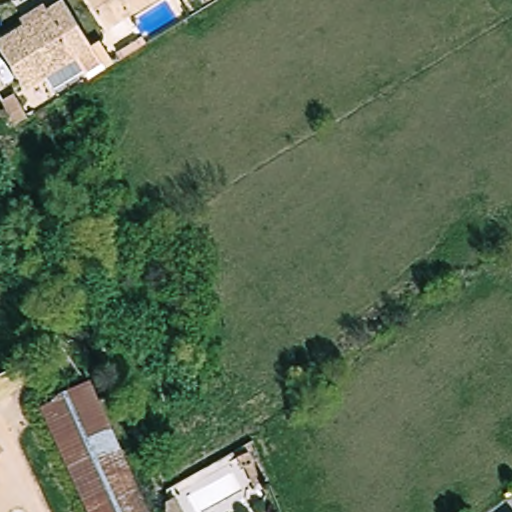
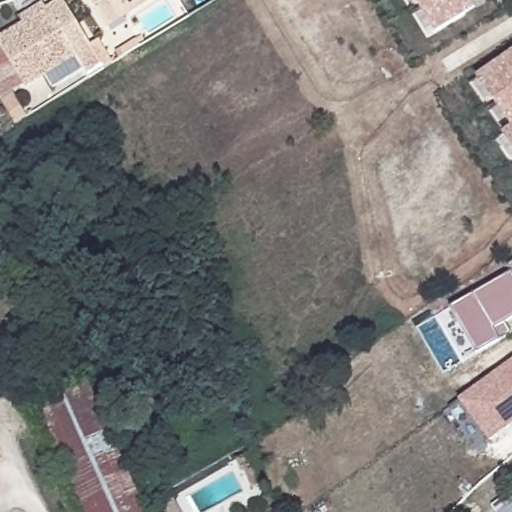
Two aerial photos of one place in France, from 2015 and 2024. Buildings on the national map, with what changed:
unchanged [(105,69),(90,77),(87,72),(57,91),(49,79),(31,90),(0,42),(0,40),(64,0),(92,46),(99,42),(112,65),(105,69)]
unchanged [(145,0),(105,25),(88,0),(145,0)]
new [(435,35),(414,0),(471,0),(477,9),(435,35)]
unchanged [(124,50),(119,52),(116,46),(137,34),(140,40),(124,50)]
new [(511,127),(475,77),(512,51),(512,149),(502,135),(511,127)]
unchanged [(6,95),(19,87),(33,111),(20,119),(6,95)]
new [(509,267),(512,265),(512,273),(509,267)]
new [(512,274),(512,318),(505,322),(512,333),(477,355),(451,308),(512,274)]
new [(488,441),(458,399),(512,360),(512,424),(488,441)]
unchanged [(34,400),(83,377),(142,512),(84,512),(34,400)]
unchanged [(0,458),(0,448),(5,453),(0,458)]
unchanged [(243,460),(248,457),(261,487),(255,490),(251,491),(243,471),(240,472),(235,463),(243,460)]
unchanged [(169,505),(174,503),(178,512),(163,512),(164,507),(169,505)]

